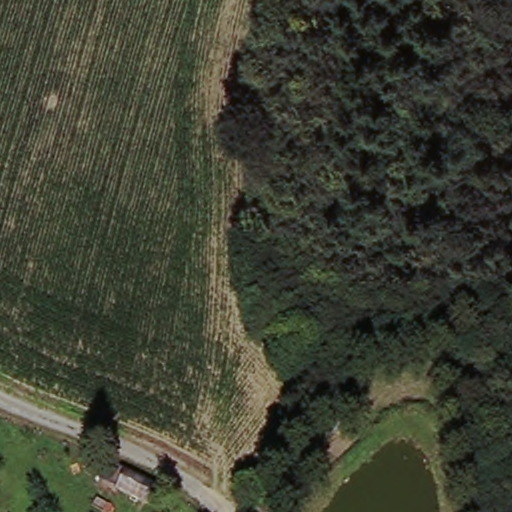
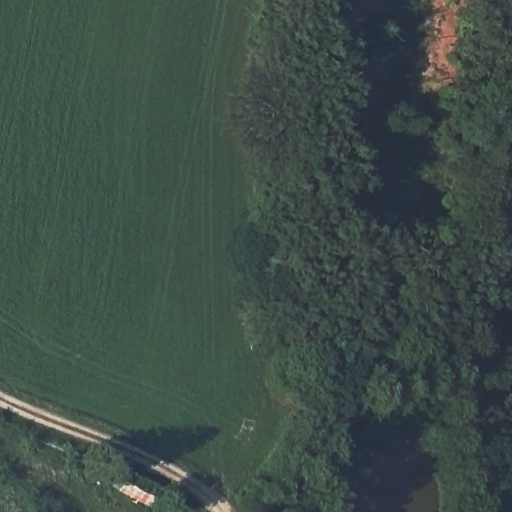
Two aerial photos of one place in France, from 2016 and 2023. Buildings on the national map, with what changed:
unchanged [(157,493),(150,507),(121,492),(130,478),(157,493)]

